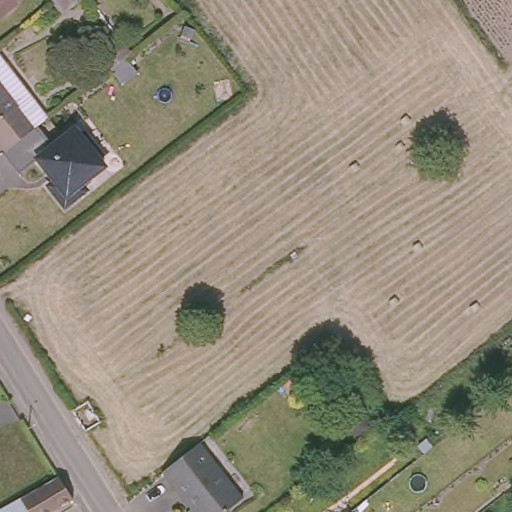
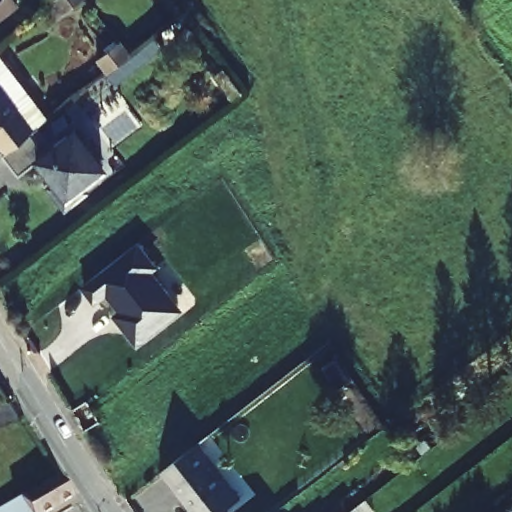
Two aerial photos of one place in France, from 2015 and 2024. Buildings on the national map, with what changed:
unchanged [(13,0),(0,10),(0,0),(13,0)]
unchanged [(58,0),(79,0),(66,10),(58,0)]
unchanged [(132,55),(112,70),(103,58),(123,43),(132,55)]
unchanged [(40,117),(27,128),(0,92),(0,65),(40,117)]
unchanged [(27,128),(0,148),(0,92),(27,128)]
unchanged [(37,128),(52,148),(74,131),(80,139),(85,136),(100,156),(96,160),(103,169),(80,186),(84,192),(63,208),(48,188),(54,183),(37,161),(17,176),(2,155),(5,151),(37,128)]
new [(135,245),(154,268),(148,272),(176,308),(175,315),(140,342),(132,341),(122,327),(128,323),(105,293),(94,302),(82,286),(135,245)]
demolished [(90,404),(100,420),(83,431),(70,409),(87,399),(90,404)]
unchanged [(237,501),(223,512),(186,512),(190,509),(162,473),(195,447),(237,501)]
unchanged [(62,472),(76,492),(41,512),(34,512),(25,494),(62,472)]
unchanged [(34,512),(0,512),(0,507),(25,494),(34,512)]

